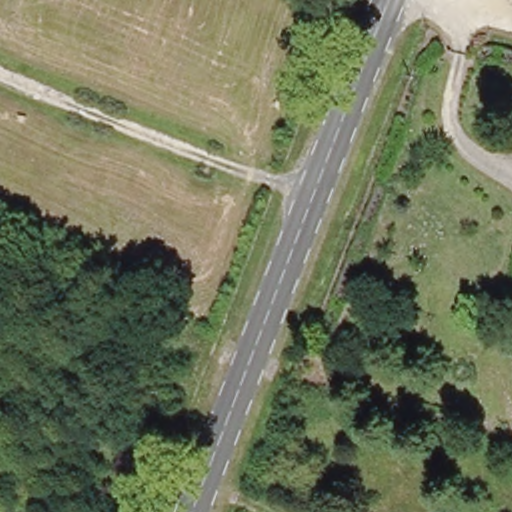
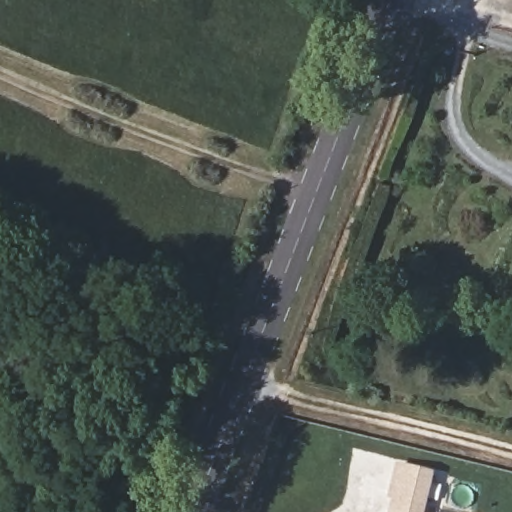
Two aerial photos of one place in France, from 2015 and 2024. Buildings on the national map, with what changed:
new [(400,462),(433,471),(426,502),(392,493),(400,462)]
new [(423,512),(403,512),(398,511),(398,512),(393,512),(397,495),(426,502),(423,512)]
new [(403,512),(398,512),(398,511),(403,512)]

